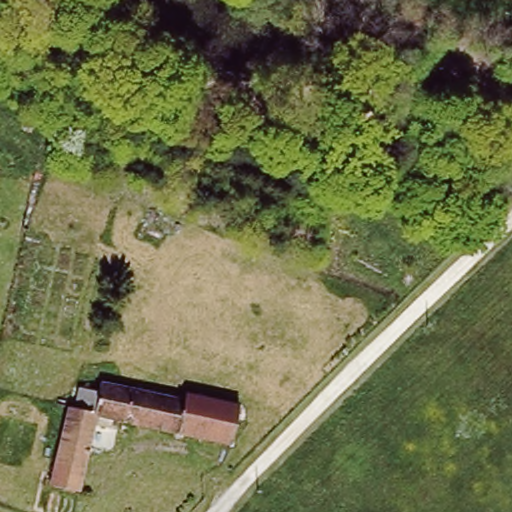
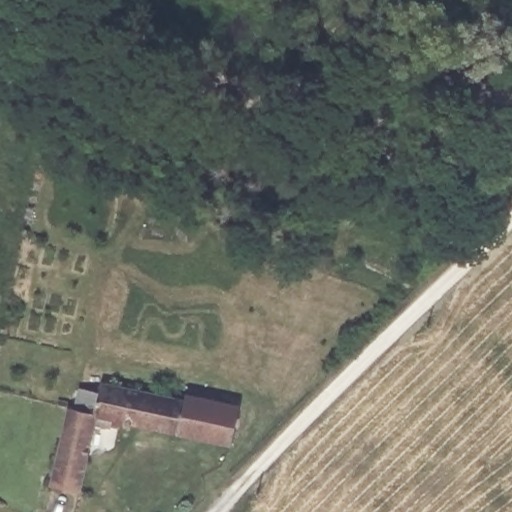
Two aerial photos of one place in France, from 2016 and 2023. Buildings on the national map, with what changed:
unchanged [(433,79),(450,86),(439,111),(423,104),(433,79)]
unchanged [(233,409),(225,446),(109,423),(107,434),(88,430),(74,495),(47,489),(62,411),(72,413),(75,393),(95,397),(97,387),(178,404),(179,397),(233,409)]

